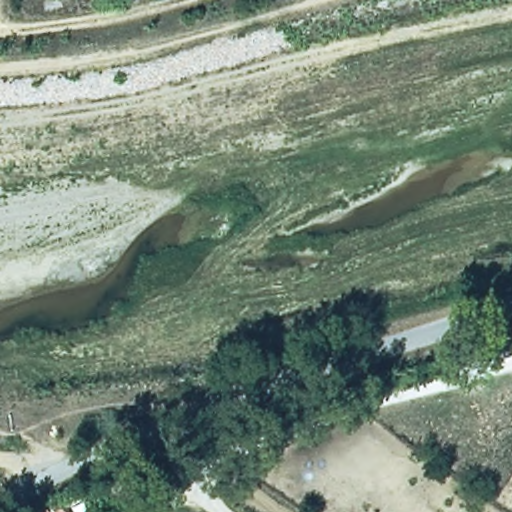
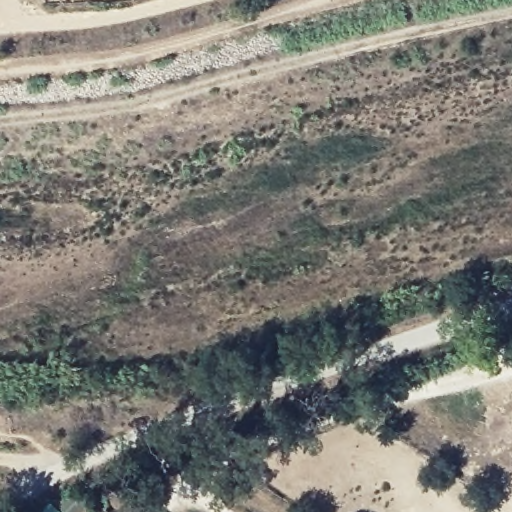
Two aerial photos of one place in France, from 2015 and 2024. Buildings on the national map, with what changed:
unchanged [(53,512),(32,512),(43,501),(53,512)]

